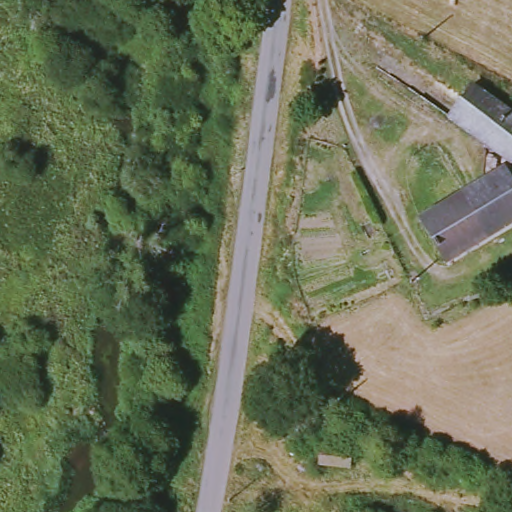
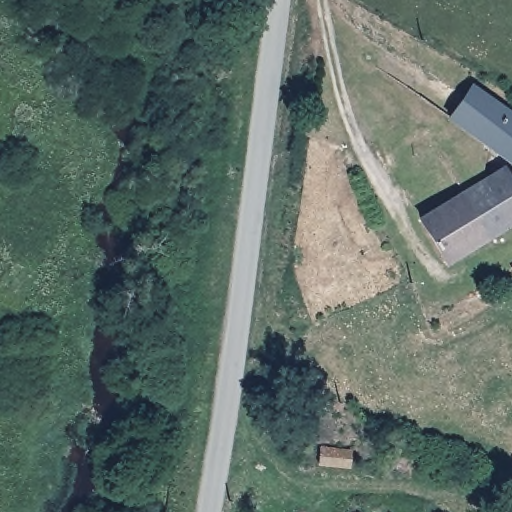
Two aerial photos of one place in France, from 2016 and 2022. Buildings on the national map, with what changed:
unchanged [(512,109),(512,162),(452,120),(477,84),(512,109)]
unchanged [(425,216),(510,172),(512,175),(512,224),(446,258),(425,216)]
unchanged [(428,457),(417,475),(402,469),(415,449),(428,457)]
unchanged [(365,456),(364,473),(330,473),(332,453),(365,456)]

